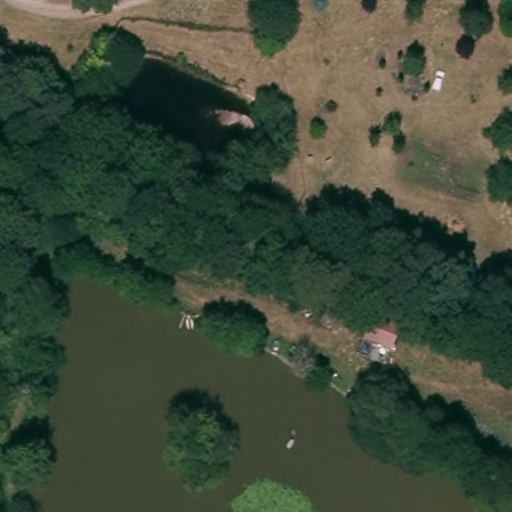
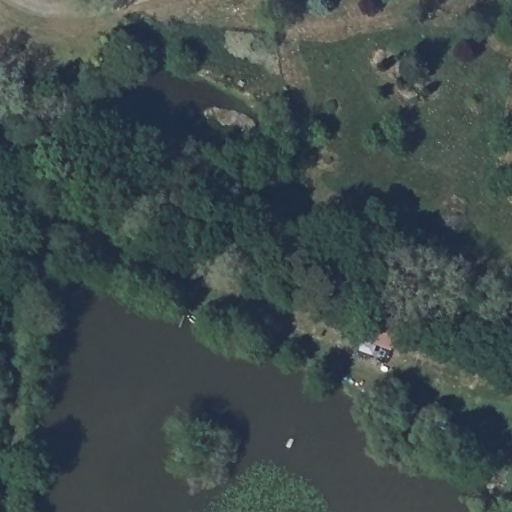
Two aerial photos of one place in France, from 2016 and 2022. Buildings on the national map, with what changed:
unchanged [(366,312),(399,323),(389,353),(357,340),(366,312)]

